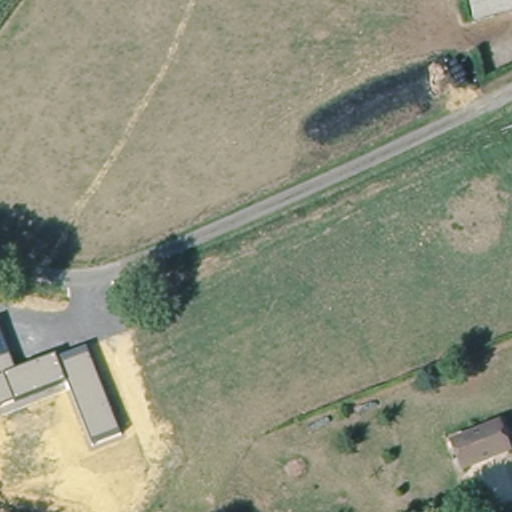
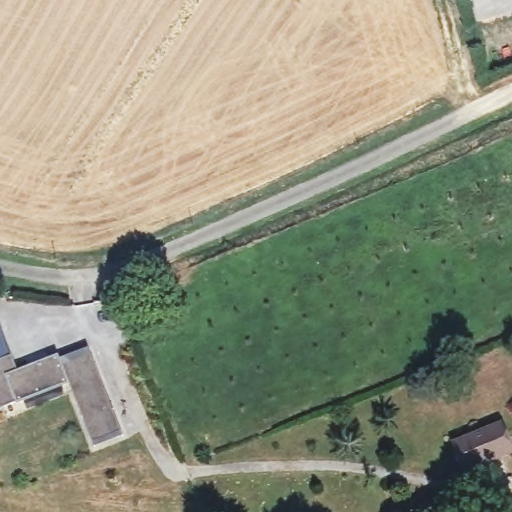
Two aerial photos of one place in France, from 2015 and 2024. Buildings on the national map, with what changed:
unchanged [(472,15),(468,0),(509,0),(511,8),(472,15)]
unchanged [(511,8),(509,0),(512,0),(512,8),(511,8)]
unchanged [(57,354),(59,358),(86,347),(120,433),(91,446),(66,381),(0,409),(0,329),(15,371),(57,354)]
unchanged [(503,421),(512,449),(463,469),(454,441),(503,421)]

